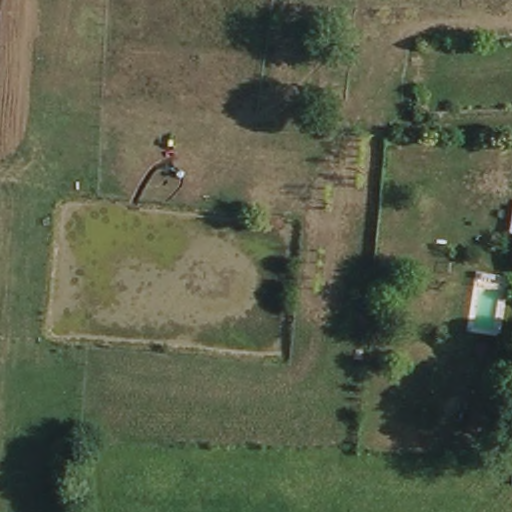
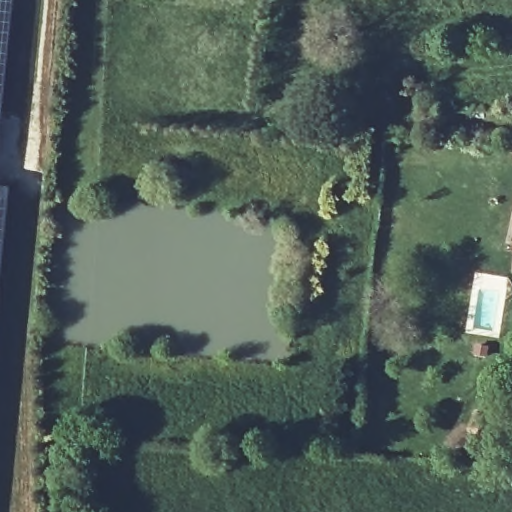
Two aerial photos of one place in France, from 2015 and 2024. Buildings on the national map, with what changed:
new [(11,0),(0,103),(0,0),(11,0)]
new [(7,184),(0,259),(0,184),(7,184)]
unchanged [(512,265),(512,279),(508,279),(512,265)]

